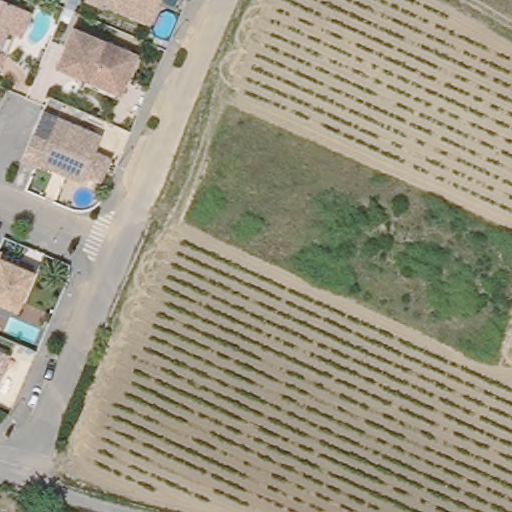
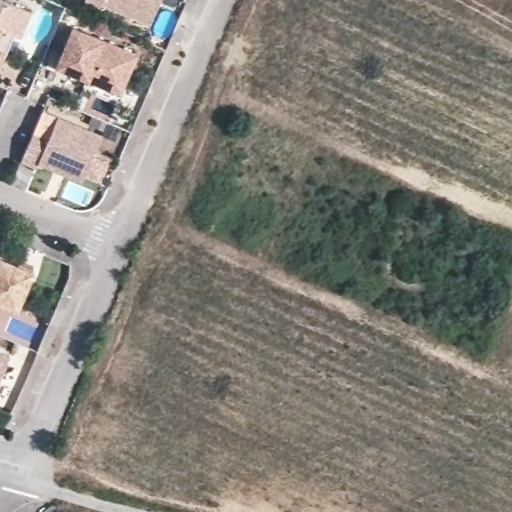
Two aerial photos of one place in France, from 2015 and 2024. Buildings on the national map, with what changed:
unchanged [(0,0),(16,0),(24,3),(31,7),(21,31),(13,28),(5,25),(0,37),(0,0)]
unchanged [(101,3),(100,5),(88,0),(160,0),(150,23),(101,3)]
unchanged [(106,88),(55,67),(72,26),(137,54),(123,85),(120,94),(106,88)]
unchanged [(0,61),(0,46),(5,48),(0,61)]
unchanged [(81,176),(38,158),(36,162),(21,155),(32,128),(47,135),(57,111),(101,130),(81,176)]
unchanged [(0,248),(0,246),(1,246),(0,248)]
unchanged [(0,298),(0,253),(33,266),(16,305),(0,298)]
unchanged [(0,386),(0,344),(15,350),(0,386)]

